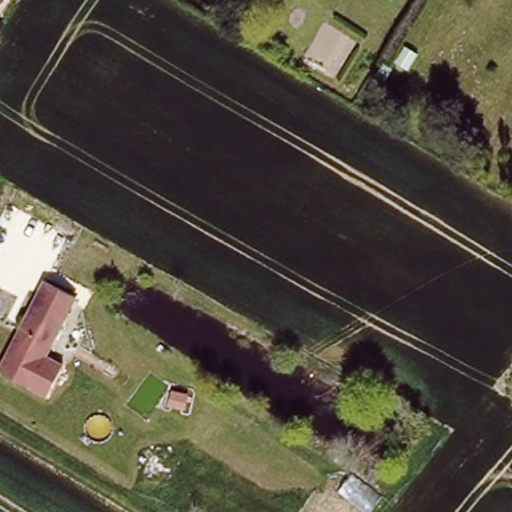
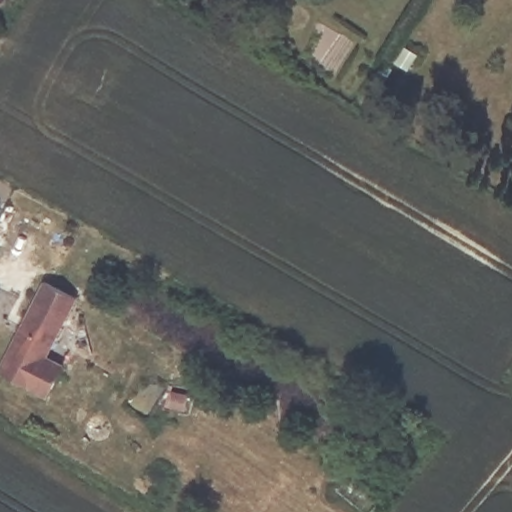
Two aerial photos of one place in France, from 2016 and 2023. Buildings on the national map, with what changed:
unchanged [(0,3),(0,0),(2,0),(0,3)]
unchanged [(44,350),(62,360),(45,390),(0,364),(0,357),(47,275),(77,292),(44,350)]

